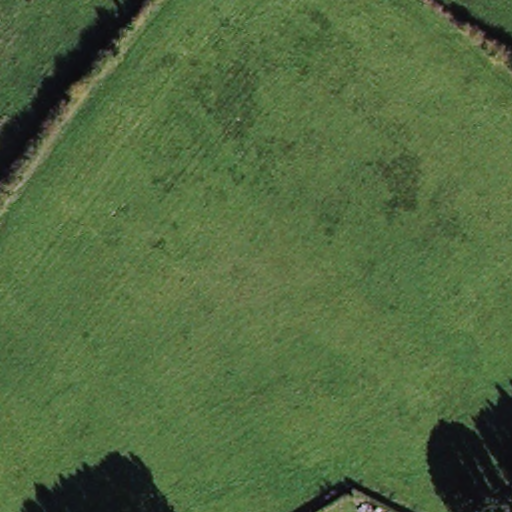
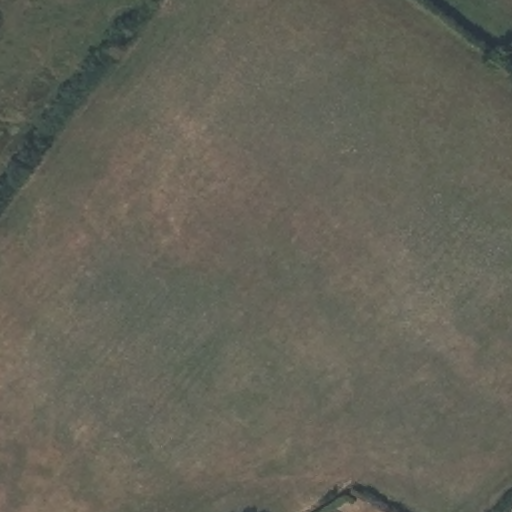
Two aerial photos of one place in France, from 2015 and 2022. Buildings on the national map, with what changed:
[]

